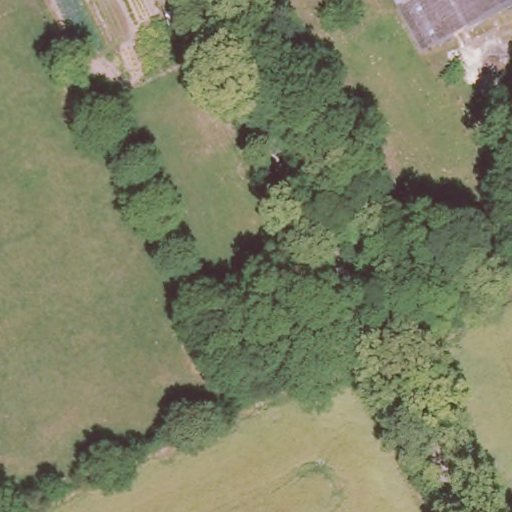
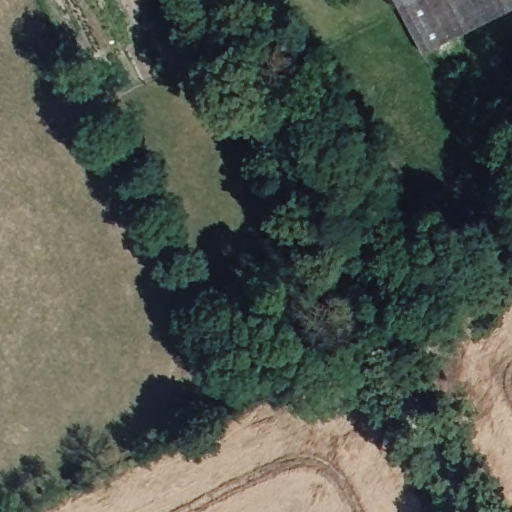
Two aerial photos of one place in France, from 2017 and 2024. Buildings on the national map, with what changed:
unchanged [(416,53),(387,0),(512,0),(512,2),(416,53)]

